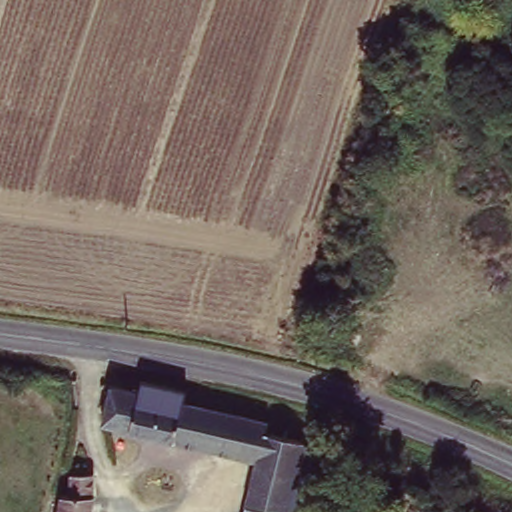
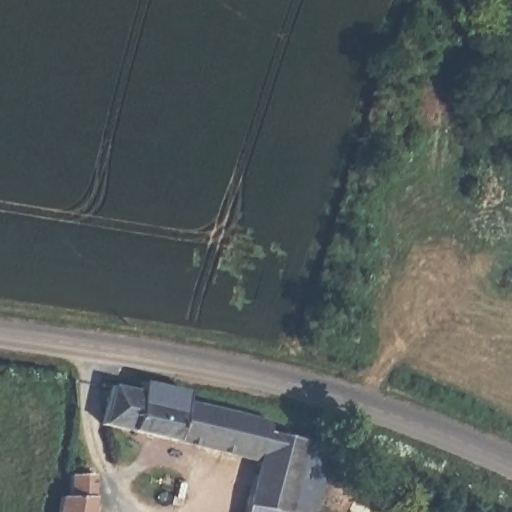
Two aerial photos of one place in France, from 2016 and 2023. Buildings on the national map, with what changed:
unchanged [(122,375),(130,362),(175,377),(171,391),(259,421),(244,464),(93,413),(107,370),(122,375)]
unchanged [(296,432),(294,442),(313,447),(304,492),(286,491),(281,511),(281,512),(243,512),(243,510),(249,466),(244,464),(259,421),(296,432)]
unchanged [(95,484),(88,512),(61,512),(70,475),(95,484)]

